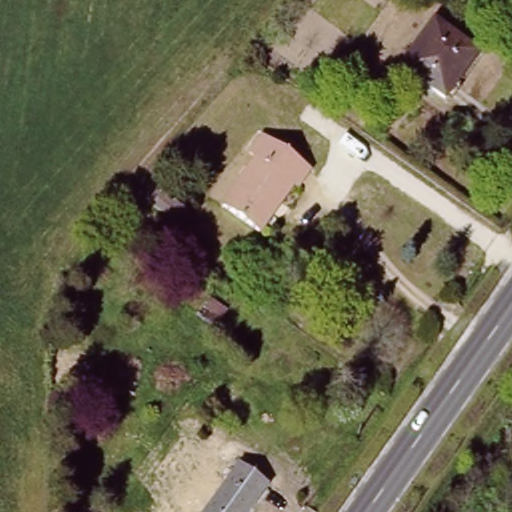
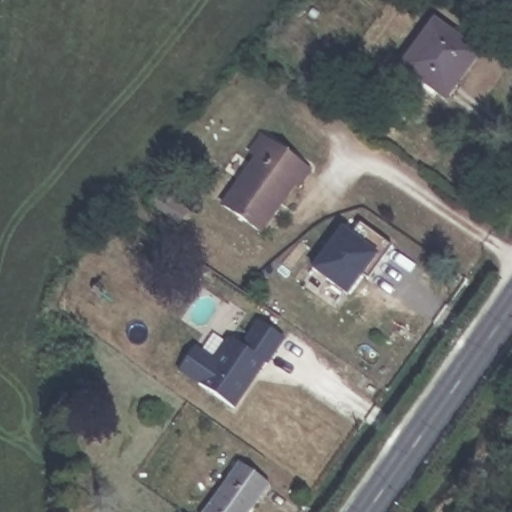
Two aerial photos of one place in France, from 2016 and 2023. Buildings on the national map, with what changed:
unchanged [(434,17),(477,49),(444,97),(398,63),(434,17)]
unchanged [(255,152),(247,147),(259,131),(307,165),(296,181),(290,177),(254,226),(220,202),(255,152)]
unchanged [(165,183),(195,206),(184,222),(154,198),(165,183)]
new [(338,228),(349,236),(358,223),(391,248),(368,280),(362,276),(347,296),(309,269),(338,228)]
new [(195,344),(215,358),(230,336),(242,344),(260,320),(285,338),(267,363),(265,362),(234,406),(179,367),(195,344)]
unchanged [(236,458),(265,480),(245,512),(200,512),(236,458)]

